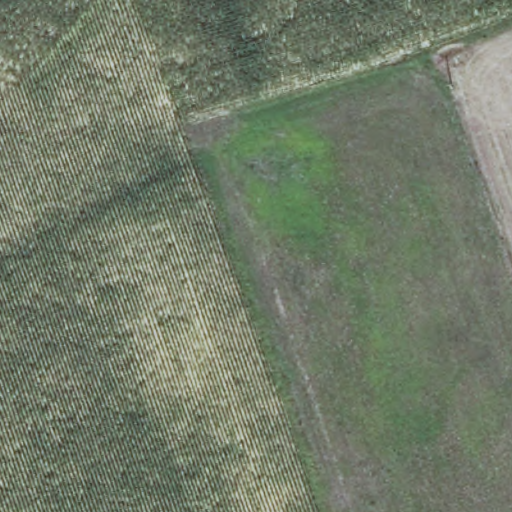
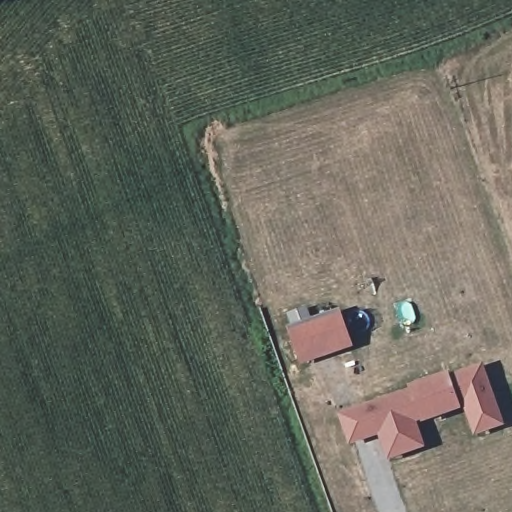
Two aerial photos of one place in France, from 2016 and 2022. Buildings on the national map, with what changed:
new [(341,312),(355,348),(302,367),(290,330),(341,312)]
new [(475,437),(465,409),(462,410),(463,411),(423,425),(422,422),(417,425),(426,450),(390,460),(380,437),(350,446),(339,416),(410,390),(410,387),(450,374),(450,376),(483,365),(505,425),(475,437)]

